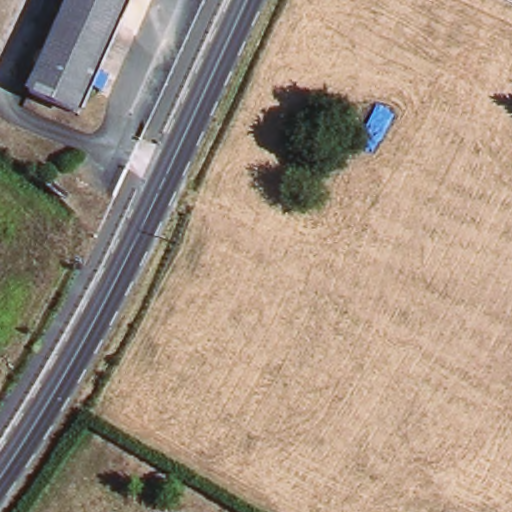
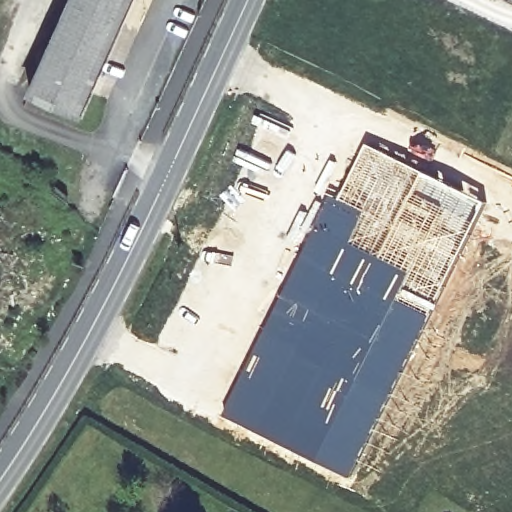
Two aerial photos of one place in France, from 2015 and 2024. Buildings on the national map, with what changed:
unchanged [(77,117),(29,95),(73,0),(131,0),(77,117)]
new [(266,329),(311,232),(324,210),(354,227),(361,214),(337,203),(367,144),(462,190),(486,204),(455,263),(450,260),(444,272),(439,273),(438,275),(418,272),(416,274),(405,288),(401,286),(396,293),(432,312),(390,401),(350,477),(224,414),(266,329)]

